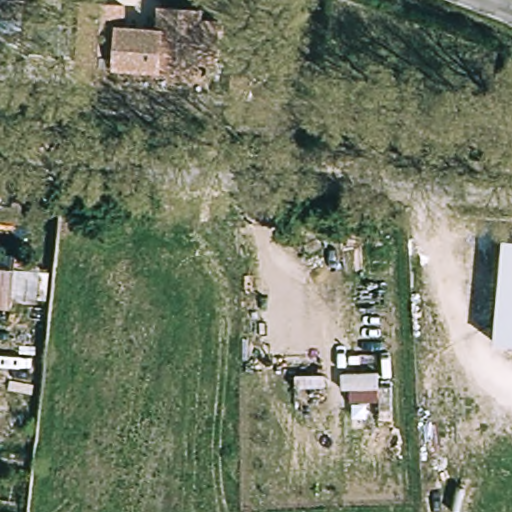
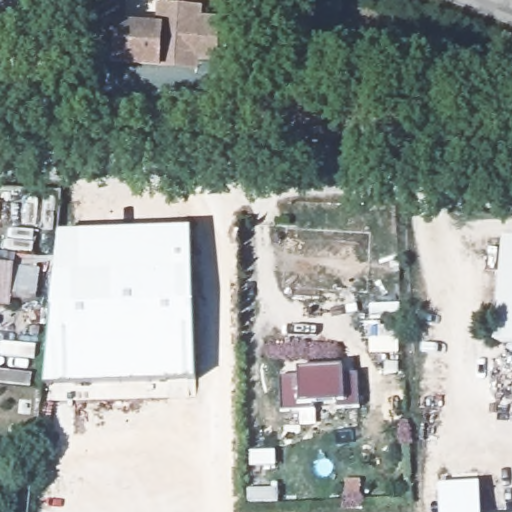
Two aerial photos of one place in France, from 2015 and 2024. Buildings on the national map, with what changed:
unchanged [(0,17),(0,0),(24,0),(22,19),(0,17)]
unchanged [(162,24),(165,3),(206,8),(205,18),(224,21),(219,61),(200,59),(198,69),(89,58),(95,0),(128,0),(126,20),(162,24)]
new [(191,232),(196,383),(43,387),(60,235),(191,232)]
unchanged [(502,239),(512,240),(512,341),(491,339),(502,239)]
unchanged [(11,256),(7,301),(0,301),(0,255),(11,256)]
new [(298,379),(298,372),(344,371),(344,378),(359,378),(359,413),(337,413),(337,407),(314,407),(314,414),(280,414),(279,379),(298,379)]
new [(479,512),(441,512),(440,490),(478,489),(479,512)]

